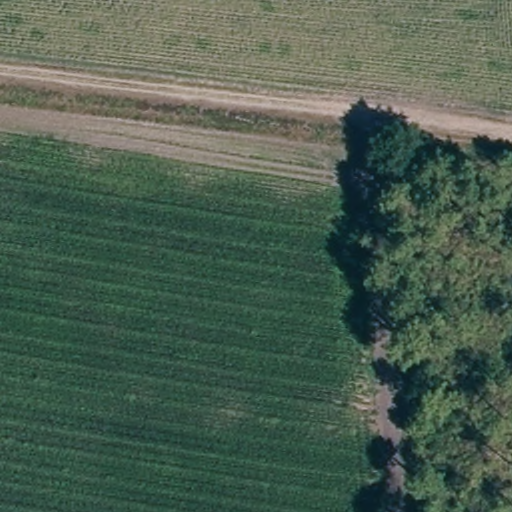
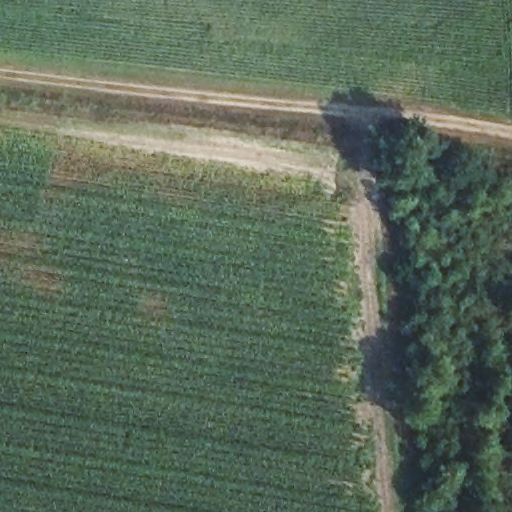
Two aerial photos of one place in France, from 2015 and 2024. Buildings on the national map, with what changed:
[]

